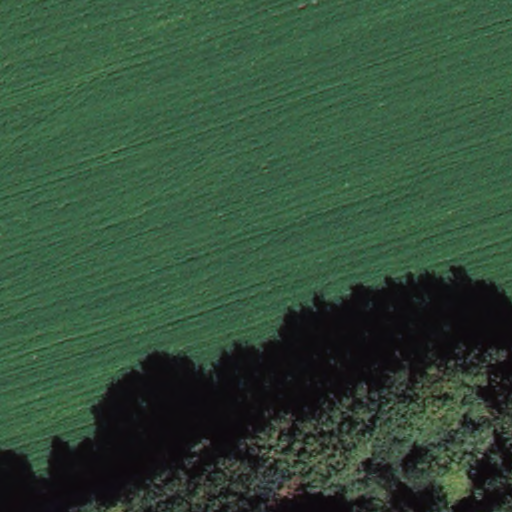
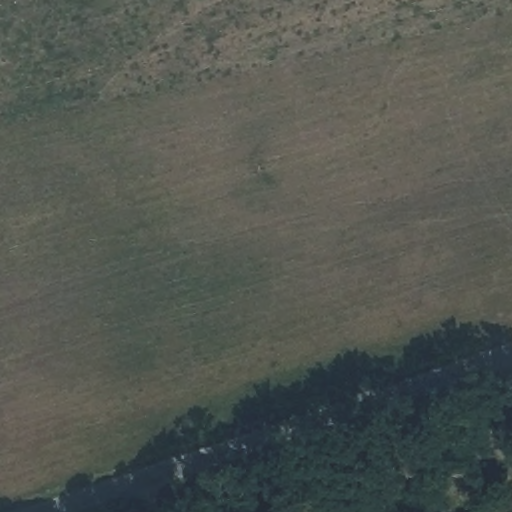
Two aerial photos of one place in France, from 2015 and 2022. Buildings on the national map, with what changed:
unchanged [(512,508),(512,512),(467,512),(506,495),(512,508)]

